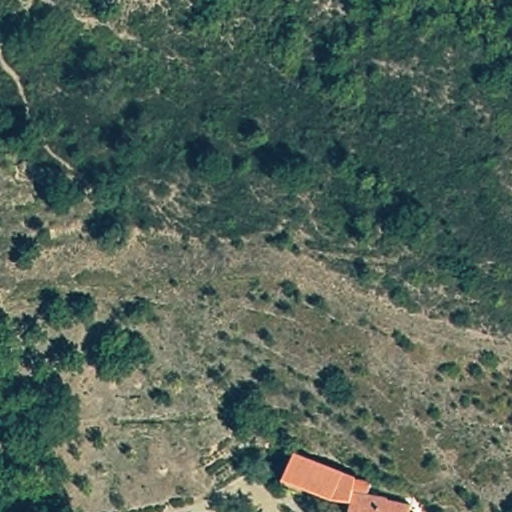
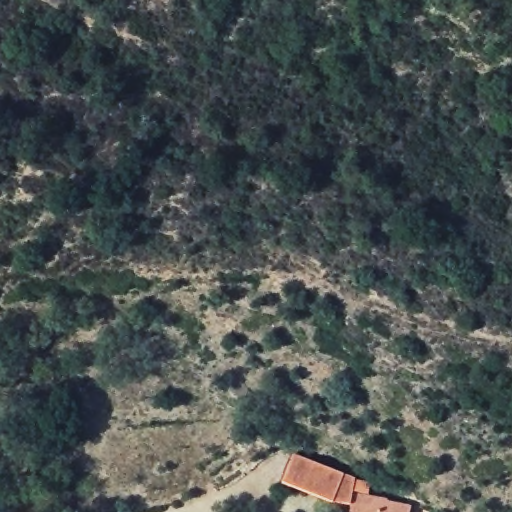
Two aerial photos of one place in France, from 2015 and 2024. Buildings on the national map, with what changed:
unchanged [(291,452),(352,475),(369,481),(369,495),(410,505),(410,512),(340,512),(279,485),(291,452)]

